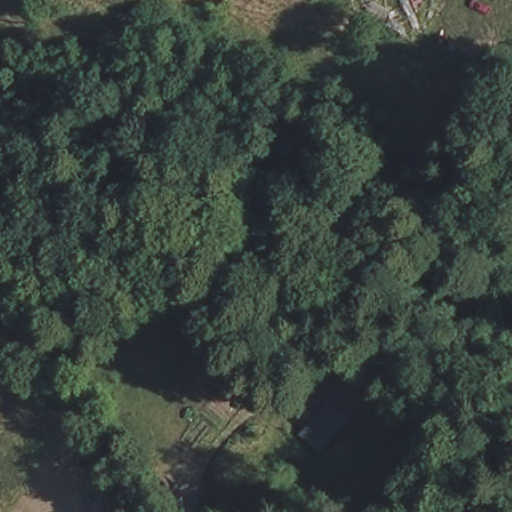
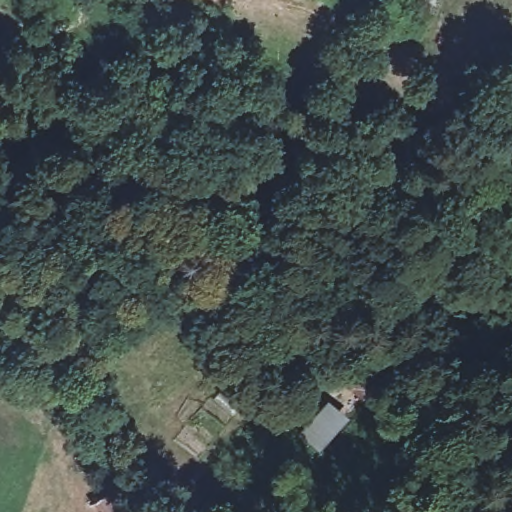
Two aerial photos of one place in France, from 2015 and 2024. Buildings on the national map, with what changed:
unchanged [(383,375),(365,404),(338,388),(357,358),(383,375)]

